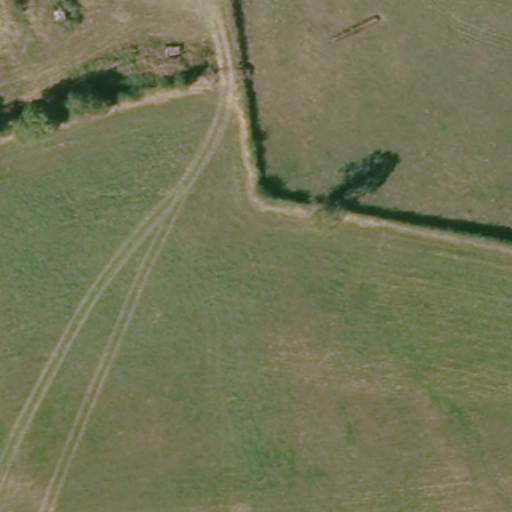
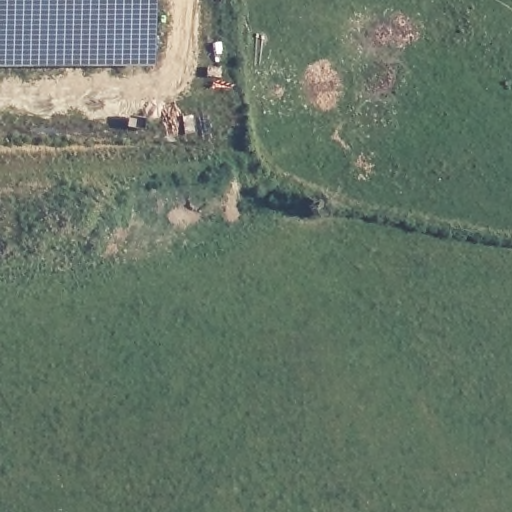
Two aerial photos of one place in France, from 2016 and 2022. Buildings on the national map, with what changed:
new [(154,0),(155,67),(0,67),(0,0),(154,0)]

